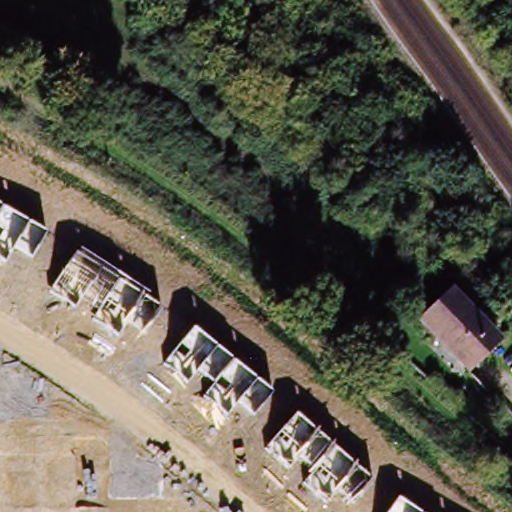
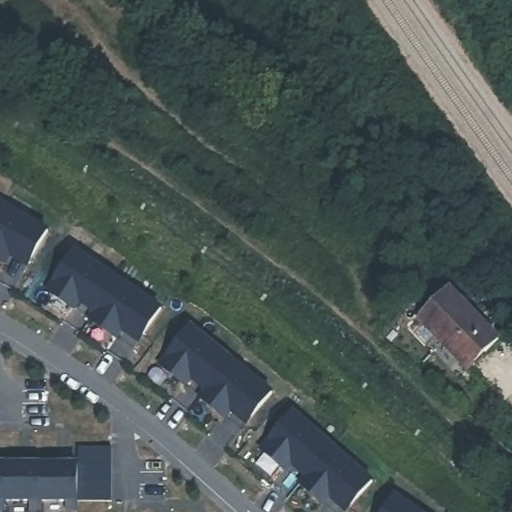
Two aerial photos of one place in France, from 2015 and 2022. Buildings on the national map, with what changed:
unchanged [(32,259),(13,250),(5,262),(0,259),(0,204),(48,230),(32,259)]
unchanged [(160,307),(142,334),(125,323),(117,335),(93,319),(102,307),(83,295),(75,307),(50,290),(80,249),(160,307)]
unchanged [(500,340),(470,371),(421,320),(452,290),(500,340)]
unchanged [(270,392),(253,416),(238,403),(226,417),(200,397),(212,383),(197,372),(186,384),(162,365),(193,330),(270,392)]
unchanged [(370,480),(348,506),(335,493),(326,503),(302,482),(312,470),(298,457),(287,468),(263,447),(295,414),(370,480)]
new [(82,449),(115,450),(115,503),(82,503),(81,512),(70,512),(70,503),(45,503),(45,512),(34,512),(34,503),(8,503),(8,511),(0,511),(0,466),(82,466),(82,449)]
unchanged [(389,512),(397,501),(414,512),(389,512)]

